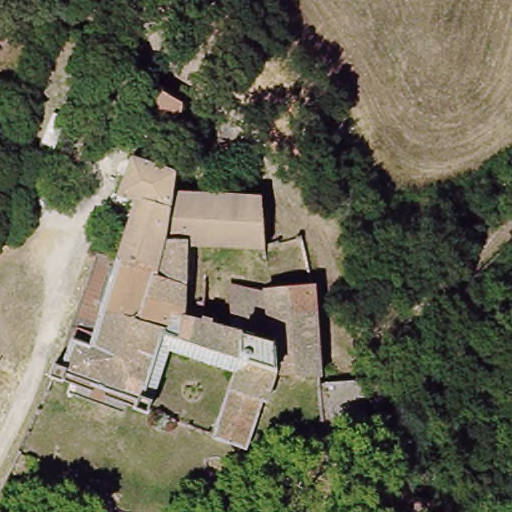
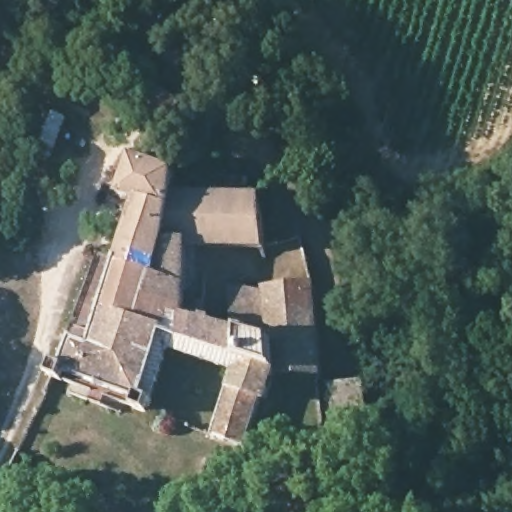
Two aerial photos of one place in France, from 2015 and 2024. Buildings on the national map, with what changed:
unchanged [(159,86),(182,100),(179,123),(151,108),(159,86)]
unchanged [(186,236),(163,237),(156,270),(118,256),(138,197),(118,191),(133,154),(174,169),(172,179),(171,189),(261,194),(263,244),(216,241),(186,240),(186,236)]
unchanged [(163,237),(186,236),(186,240),(184,300),(202,301),(201,312),(213,314),(212,318),(237,325),(272,335),(266,287),(314,282),(319,339),(321,369),(274,368),(265,398),(261,397),(245,443),(215,433),(225,402),(236,368),(169,346),(148,408),(118,396),(53,372),(51,371),(55,359),(59,361),(98,249),(118,256),(156,270),(163,237)]
unchanged [(231,281),(266,287),(272,335),(237,325),(231,281)]
unchanged [(370,440),(329,443),(321,385),(363,382),(365,404),(370,440)]

